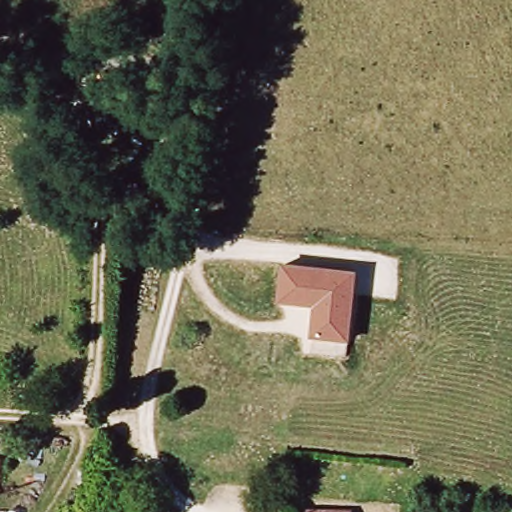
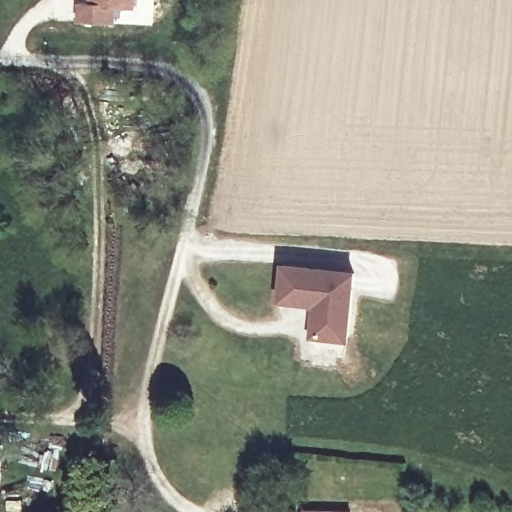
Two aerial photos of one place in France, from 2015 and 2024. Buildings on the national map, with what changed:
new [(118,8),(116,23),(78,23),(77,4),(90,4),(90,0),(136,0),(136,9),(118,8)]
unchanged [(350,345),(310,341),(312,308),(278,305),(281,264),(356,272),(350,345)]
unchanged [(307,509),(335,512),(307,512),(307,509)]

